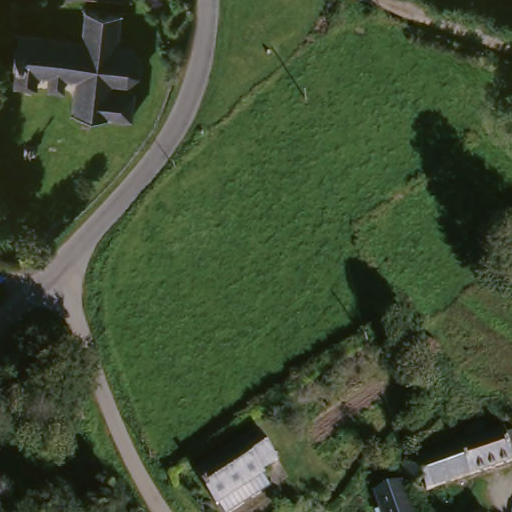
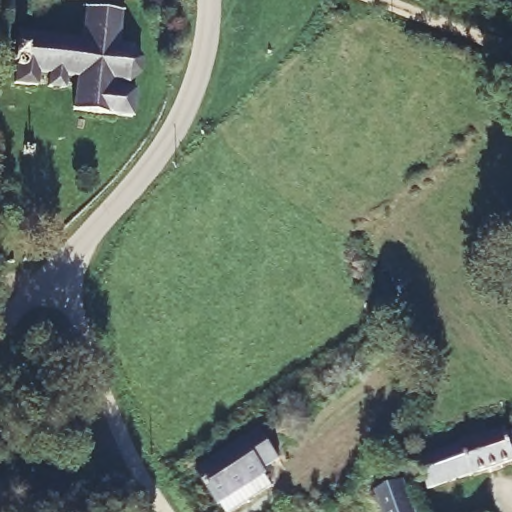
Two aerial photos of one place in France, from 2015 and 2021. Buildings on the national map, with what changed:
unchanged [(121,24),(119,54),(126,56),(133,65),(134,73),(130,79),(126,87),(118,91),(118,98),(129,100),(128,119),(76,114),(81,87),(64,86),(63,96),(44,94),(46,83),(31,83),(31,92),(9,89),(14,37),(84,45),(88,20),(121,24)]
unchanged [(251,431),(272,464),(254,475),(266,493),(236,512),(215,512),(188,471),(251,431)]
unchanged [(512,466),(508,468),(423,496),(419,487),(401,492),(399,488),(394,472),(413,465),(498,437),(512,432),(512,466)]
unchanged [(401,492),(404,505),(406,512),(375,512),(371,497),(399,488),(401,492)]
unchanged [(481,512),(457,512),(477,503),(481,512)]

